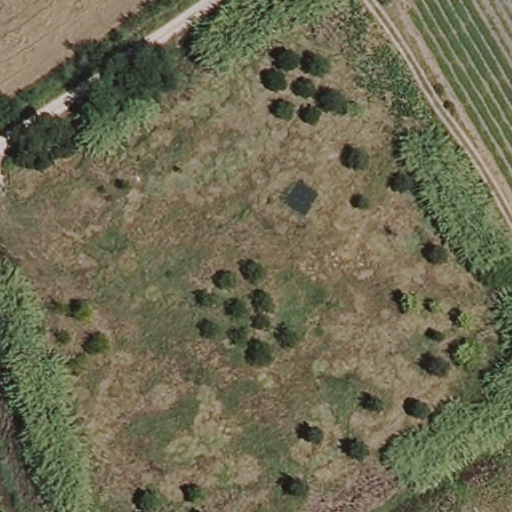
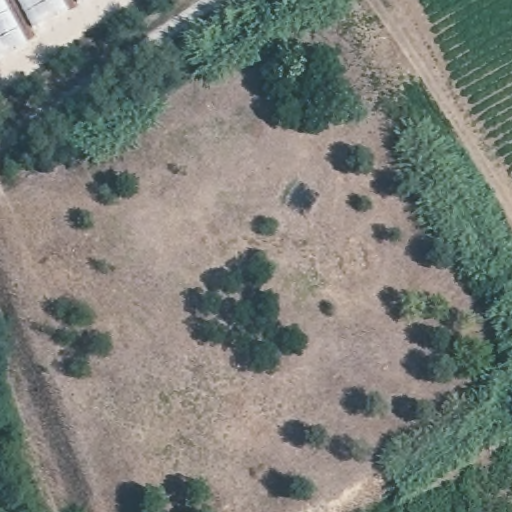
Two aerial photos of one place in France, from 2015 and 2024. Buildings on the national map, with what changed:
new [(21,32),(28,44),(0,60),(0,0),(83,0),(21,32)]

